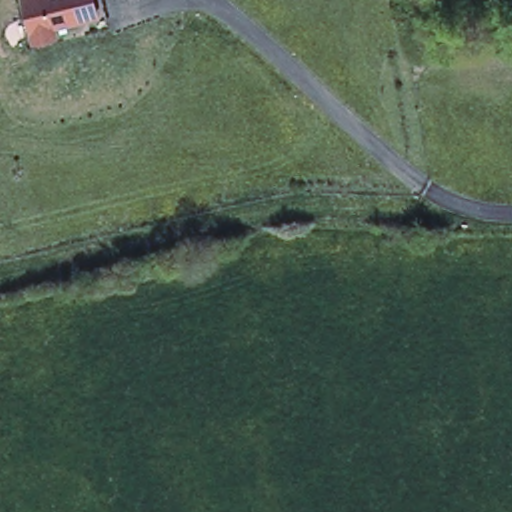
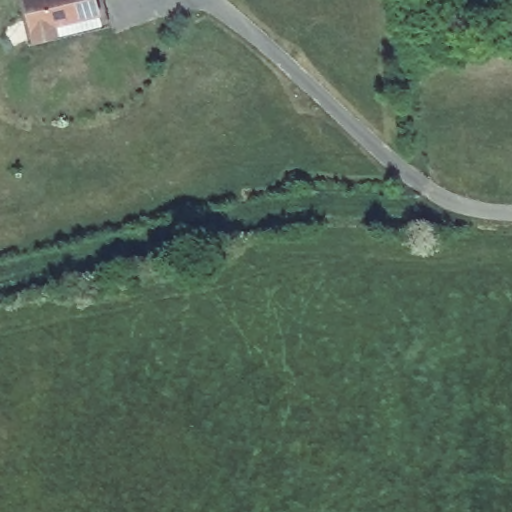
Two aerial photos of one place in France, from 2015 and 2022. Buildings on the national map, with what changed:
unchanged [(55,20),(57,27),(35,33),(27,0),(97,0),(100,8),(55,20)]

